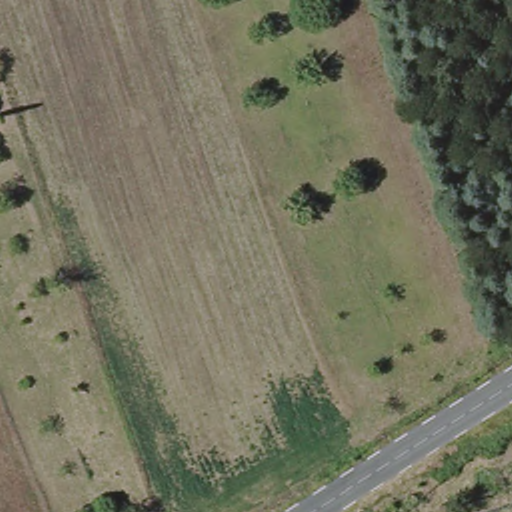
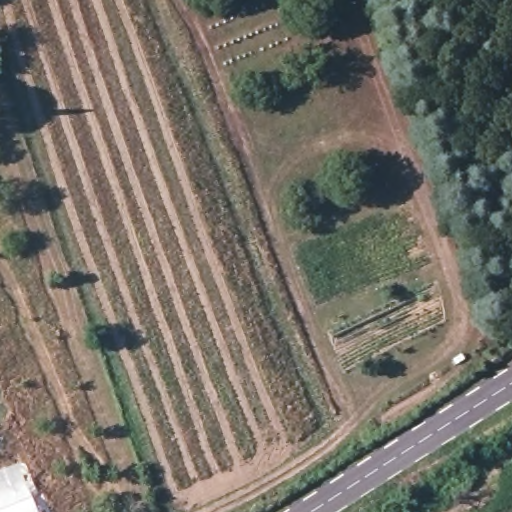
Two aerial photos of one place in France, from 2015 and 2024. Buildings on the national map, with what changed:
new [(18,462),(39,512),(0,512),(0,470),(18,462)]

